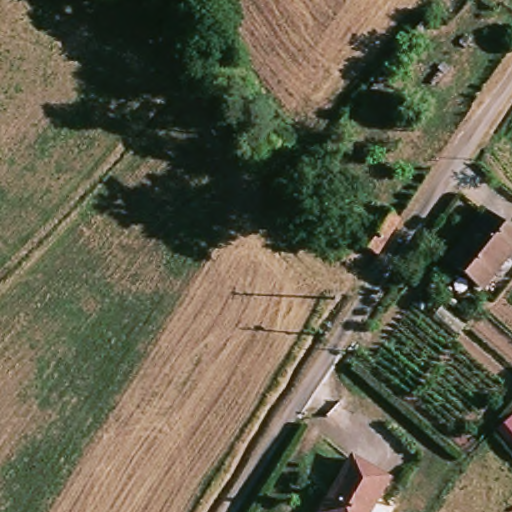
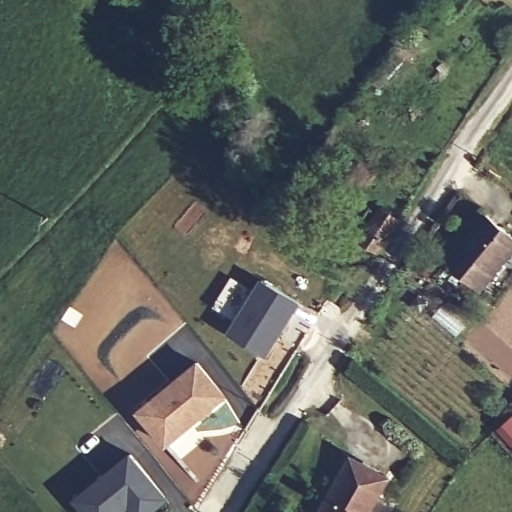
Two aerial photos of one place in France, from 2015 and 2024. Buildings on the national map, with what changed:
unchanged [(377,255),(358,242),(380,208),(400,221),(377,255)]
unchanged [(508,243),(512,246),(512,263),(483,299),(445,269),(437,262),(453,243),(475,215),(508,242),(508,243)]
new [(263,279),(298,302),(265,356),(230,334),(263,279)]
new [(198,366),(223,398),(165,445),(140,413),(198,366)]
unchanged [(512,413),(512,453),(492,430),(512,413)]
new [(132,452),(170,500),(156,512),(127,512),(126,512),(80,512),(72,502),(132,452)]
unchanged [(369,512),(321,512),(351,459),(387,480),(369,512)]

